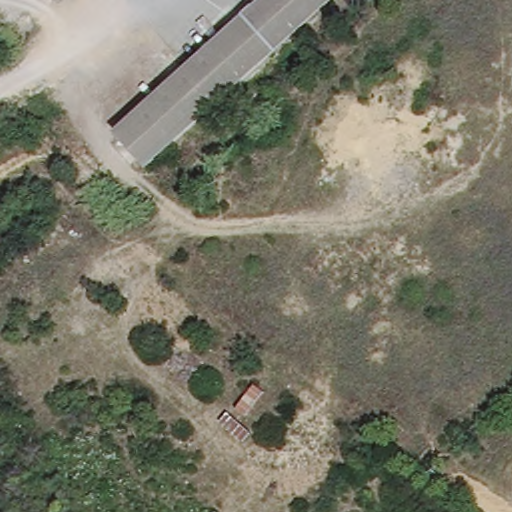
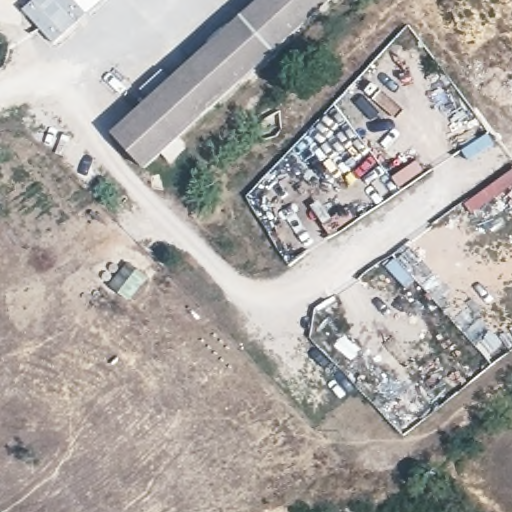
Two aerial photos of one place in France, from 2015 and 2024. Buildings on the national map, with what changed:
new [(31,0),(76,0),(87,13),(52,44),(22,9),(31,0)]
unchanged [(153,158),(164,170),(156,177),(115,132),(221,36),(260,0),(327,0),(153,158)]

